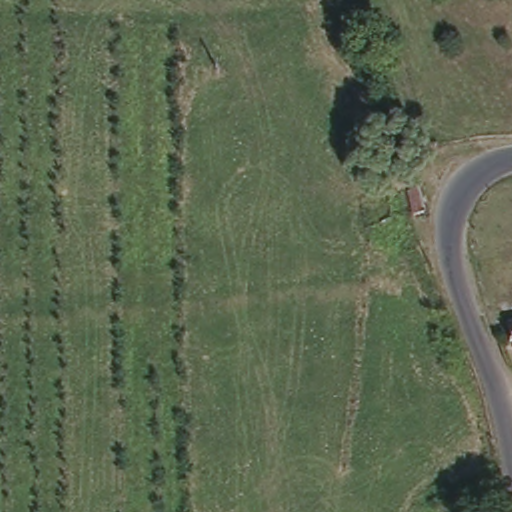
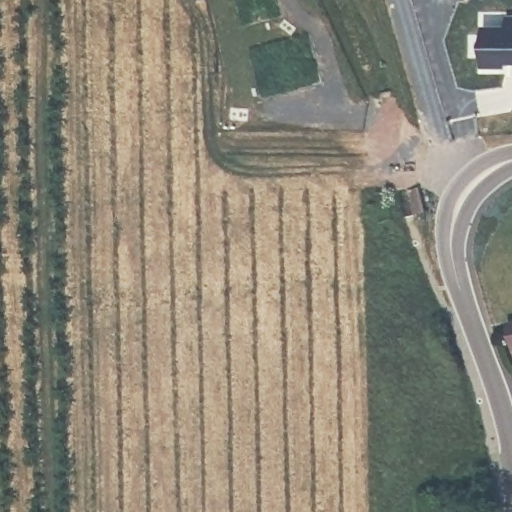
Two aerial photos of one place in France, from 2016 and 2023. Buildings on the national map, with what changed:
new [(512,77),(474,77),(476,30),(512,30),(512,77)]
unchanged [(425,211),(415,214),(409,192),(418,190),(425,211)]

